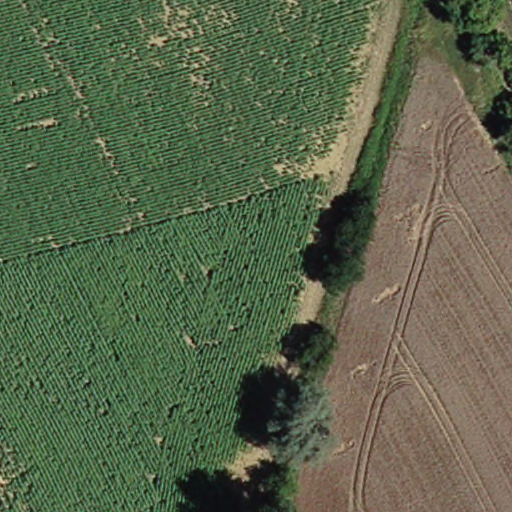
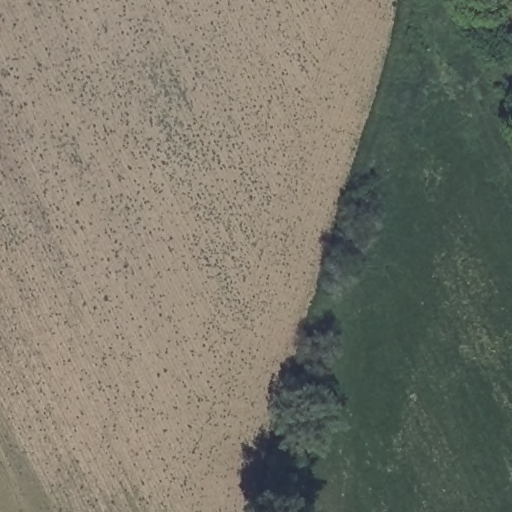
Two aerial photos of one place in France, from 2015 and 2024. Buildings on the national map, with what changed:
[]

